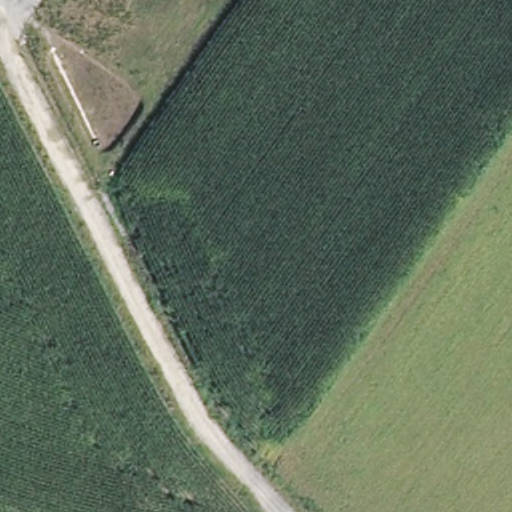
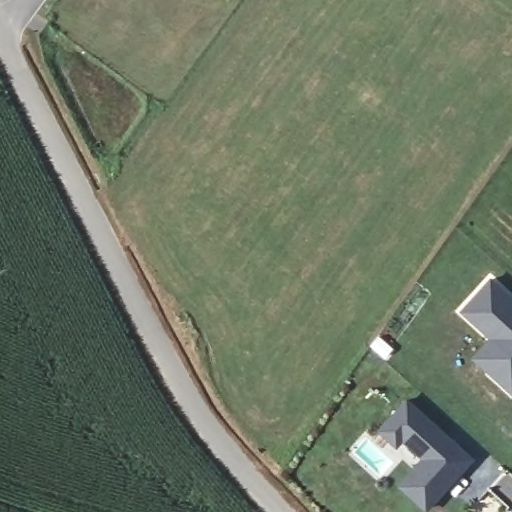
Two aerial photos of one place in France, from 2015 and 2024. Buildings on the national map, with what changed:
new [(489,338),(460,311),(490,278),(512,298),(512,396),(471,357),(489,338)]
new [(405,395),(470,453),(426,504),(399,479),(423,452),(401,433),(395,440),(378,424),(405,395)]

